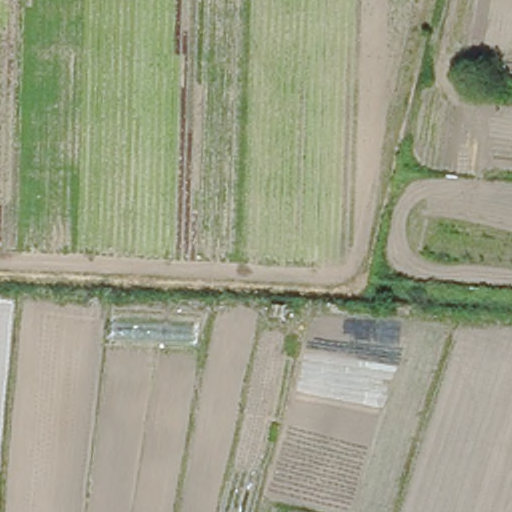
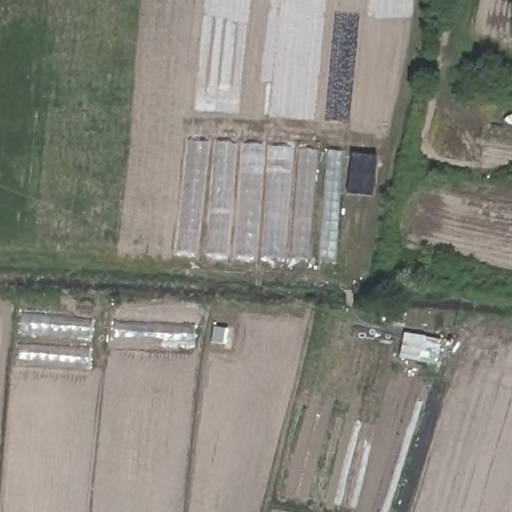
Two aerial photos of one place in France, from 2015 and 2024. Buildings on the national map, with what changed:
new [(343,152),(335,263),(178,252),(189,141),(343,152)]
new [(352,154),(377,156),(373,197),(347,194),(352,154)]
demolished [(512,418),(512,512),(474,512),(512,418)]
demolished [(248,512),(228,512),(237,473),(257,477),(248,512)]

